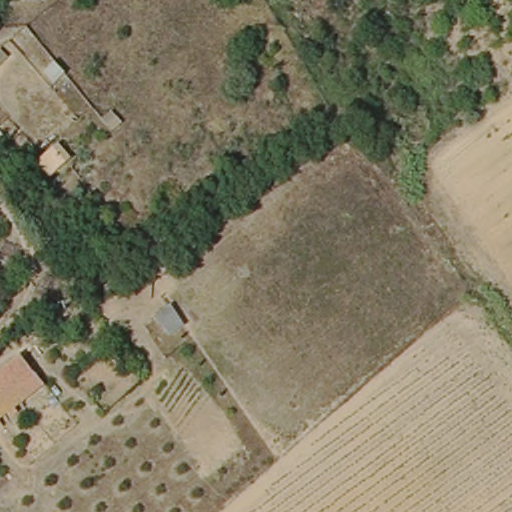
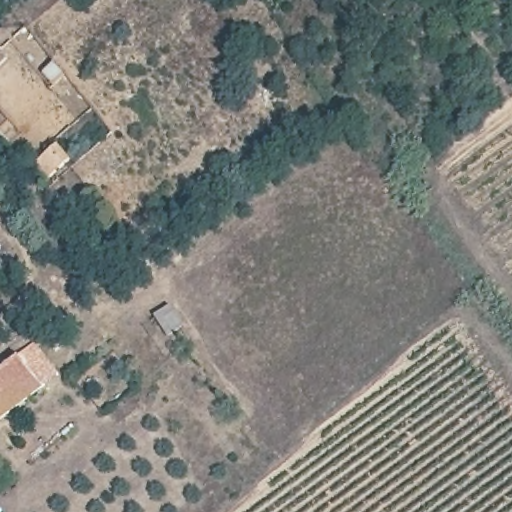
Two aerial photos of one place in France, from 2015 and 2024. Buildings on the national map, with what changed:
unchanged [(78,76),(63,91),(40,67),(55,52),(78,76)]
unchanged [(127,116),(114,130),(99,117),(113,103),(127,116)]
unchanged [(76,152),(53,171),(38,154),(62,135),(76,152)]
unchanged [(0,366),(20,350),(40,379),(0,410),(0,366)]

